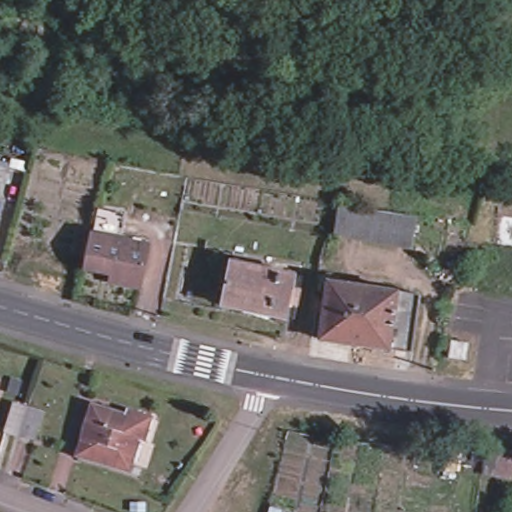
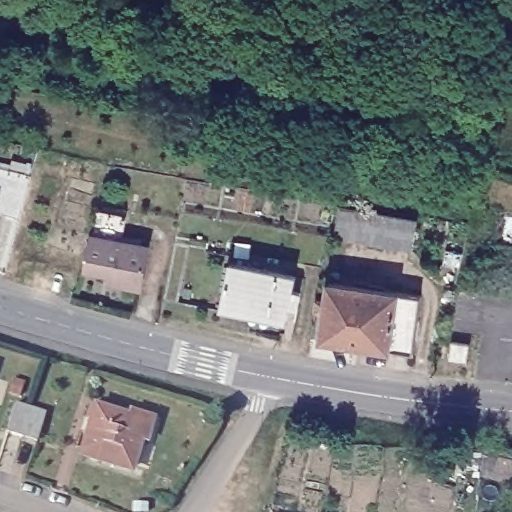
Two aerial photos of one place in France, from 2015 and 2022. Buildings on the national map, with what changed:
unchanged [(413,247),(397,244),(381,241),(366,239),(351,236),(334,233),(339,203),(356,206),(371,208),(387,211),(402,214),(418,217),(413,247)]
unchanged [(143,290),(113,283),(114,274),(88,268),(94,237),(96,237),(152,250),(143,290)]
unchanged [(301,281),(299,296),(306,298),(303,313),(295,311),(293,325),(228,310),(236,268),(301,281)]
unchanged [(323,337),(329,281),(398,291),(391,348),(323,337)]
unchanged [(413,351),(391,348),(398,291),(419,294),(413,351)]
unchanged [(459,352),(459,372),(443,371),(443,352),(459,352)]
unchanged [(128,412),(151,419),(144,442),(138,441),(131,470),(80,455),(94,408),(126,418),(128,412)]
unchanged [(25,420),(40,424),(31,454),(16,449),(0,444),(9,414),(25,420)]

